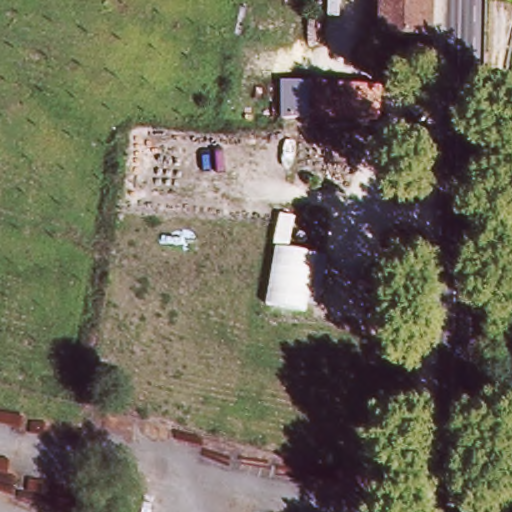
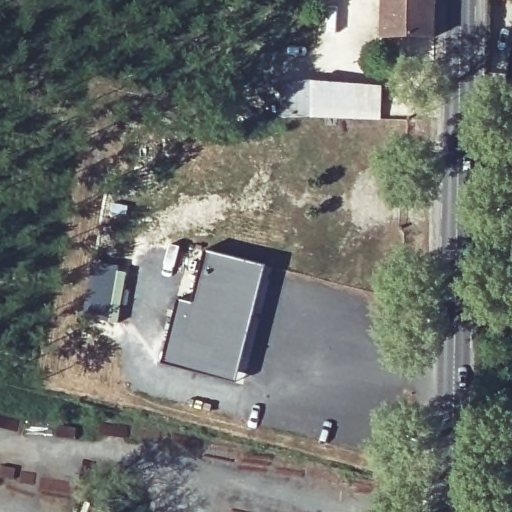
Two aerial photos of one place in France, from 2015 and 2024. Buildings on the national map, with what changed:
unchanged [(426,55),(380,53),(380,0),(434,0),(432,55),(426,55)]
unchanged [(485,0),(512,0),(512,1),(485,1),(485,0)]
unchanged [(383,88),(382,124),(314,121),(315,86),(383,88)]
new [(195,247),(270,266),(246,359),(171,340),(195,247)]
new [(101,316),(85,313),(89,293),(93,294),(95,282),(90,281),(94,262),(99,263),(101,249),(123,253),(120,272),(127,273),(118,324),(100,321),(101,316)]
demolished [(318,257),(308,314),(268,306),(277,249),(318,257)]
new [(171,340),(246,359),(240,383),(165,364),(171,340)]

